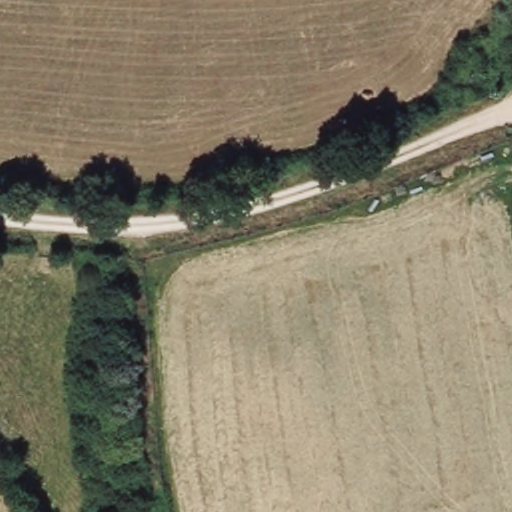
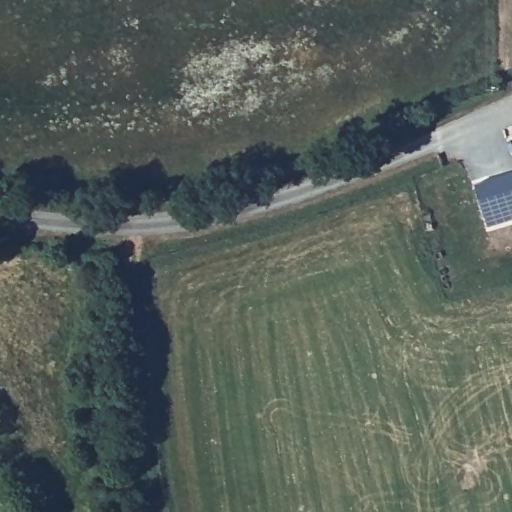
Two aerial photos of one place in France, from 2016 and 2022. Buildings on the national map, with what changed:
new [(475,182),(512,172),(512,218),(490,225),(475,182)]

